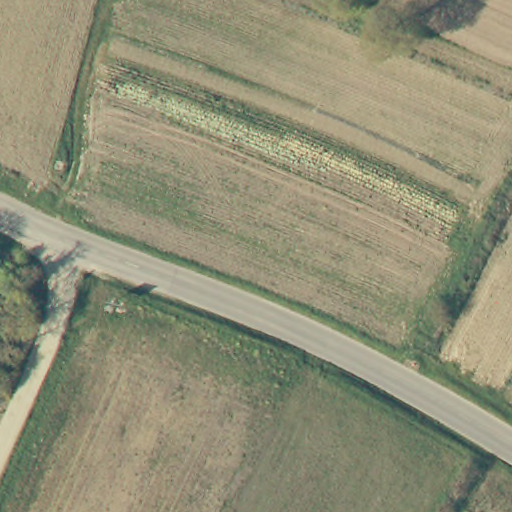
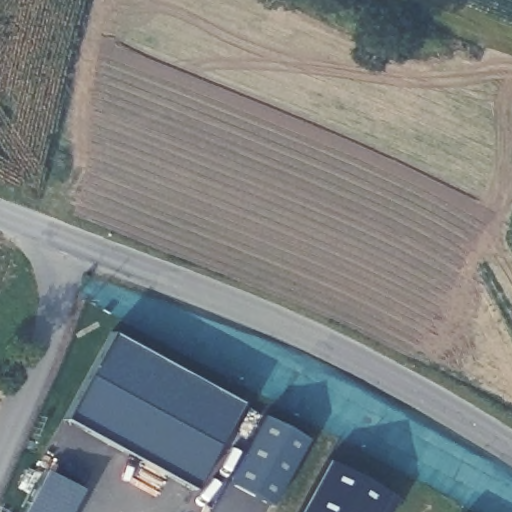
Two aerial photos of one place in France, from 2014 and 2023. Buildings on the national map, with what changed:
new [(193,491),(63,418),(111,333),(239,402),(193,491)]
new [(271,507),(226,482),(263,417),(307,439),(271,507)]
new [(23,512),(46,470),(81,490),(69,512),(23,512)]

